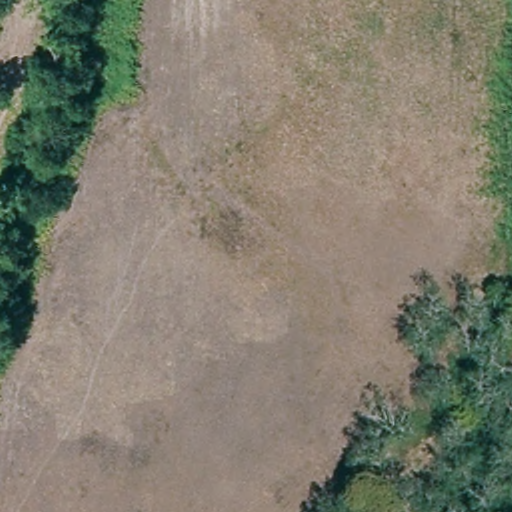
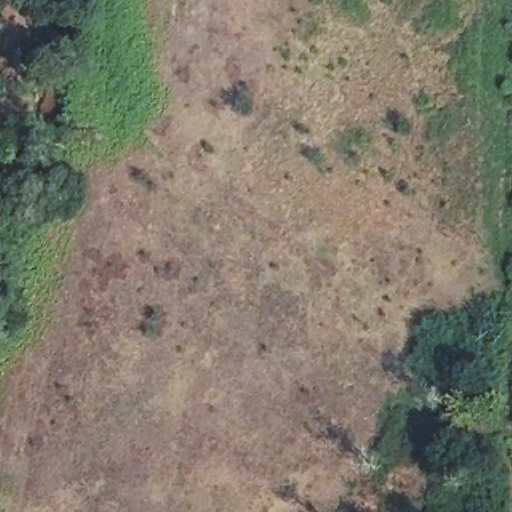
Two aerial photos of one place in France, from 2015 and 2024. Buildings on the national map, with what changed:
[]

